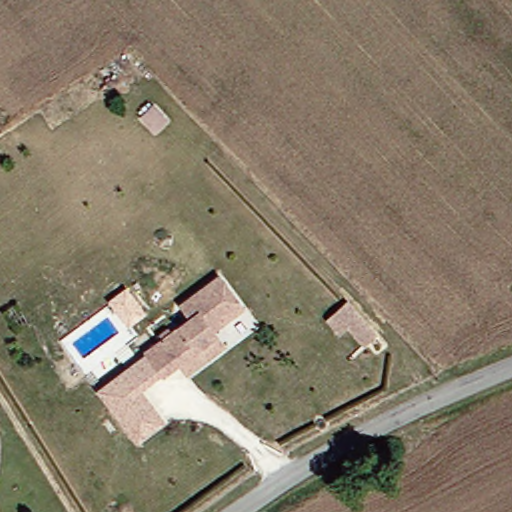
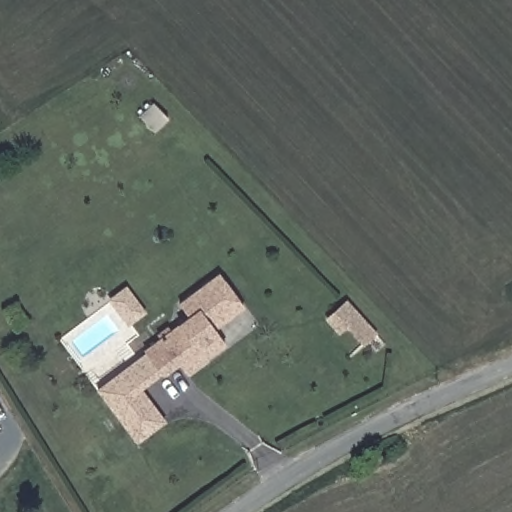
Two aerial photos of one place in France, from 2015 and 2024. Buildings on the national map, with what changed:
unchanged [(184,363),(172,373),(154,347),(167,338),(158,324),(231,273),(244,292),(204,326),(225,350),(213,358),(193,373),(184,363)]
unchanged [(204,326),(244,292),(254,306),(224,329),(234,344),(225,350),(204,326)]
unchanged [(376,335),(360,350),(344,331),(338,337),(324,321),(346,301),(376,335)]
unchanged [(143,394),(164,426),(136,445),(97,390),(154,347),(172,373),(143,394)]

